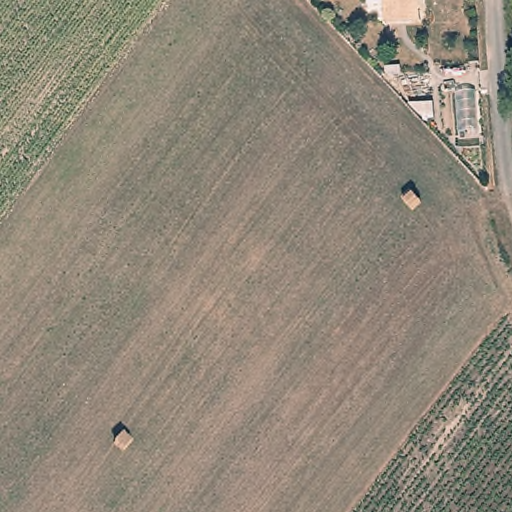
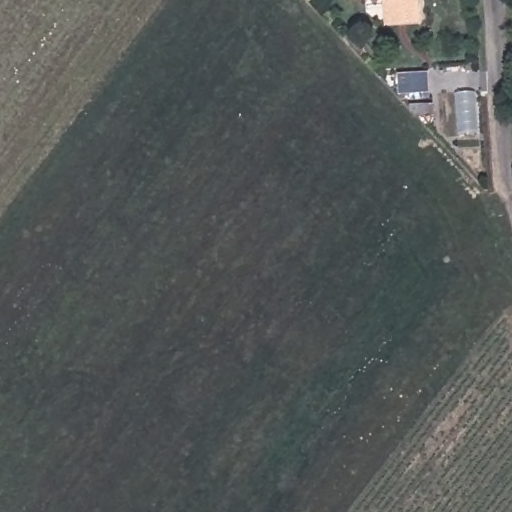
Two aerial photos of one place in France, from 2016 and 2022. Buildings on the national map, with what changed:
unchanged [(389,26),(388,15),(386,0),(420,0),(422,13),(423,23),(389,26)]

